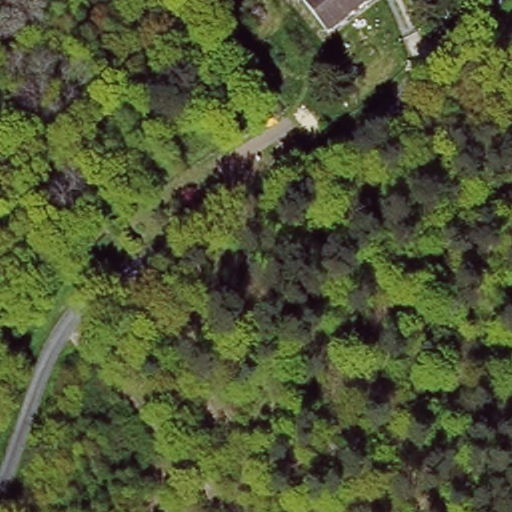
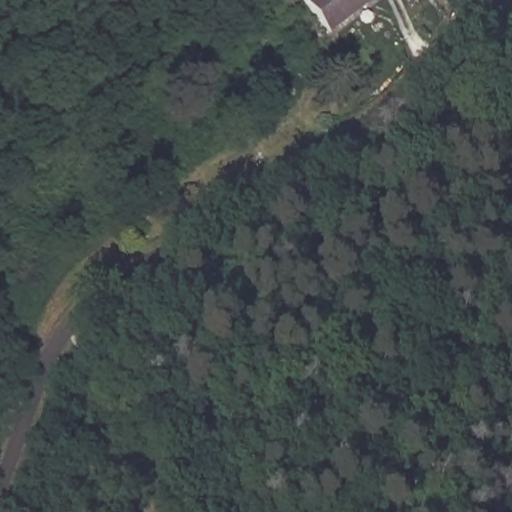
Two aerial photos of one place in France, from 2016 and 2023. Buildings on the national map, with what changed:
unchanged [(330,33),(303,1),(304,0),(372,0),(330,33)]

